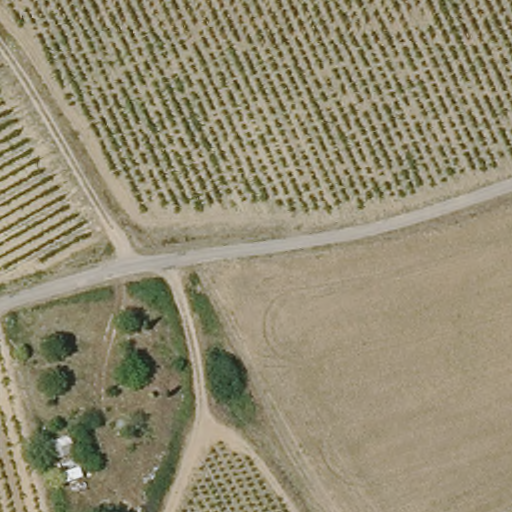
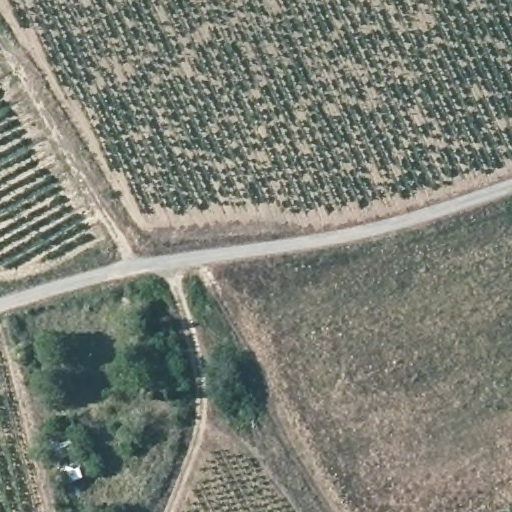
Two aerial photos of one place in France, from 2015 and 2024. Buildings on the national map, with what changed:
unchanged [(52,443),(71,439),(75,457),(57,463),(52,443)]

